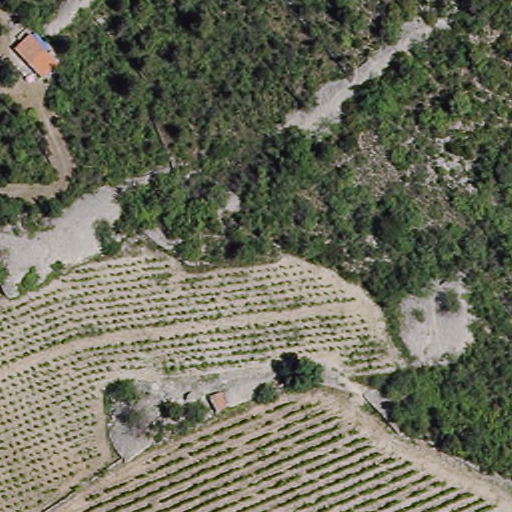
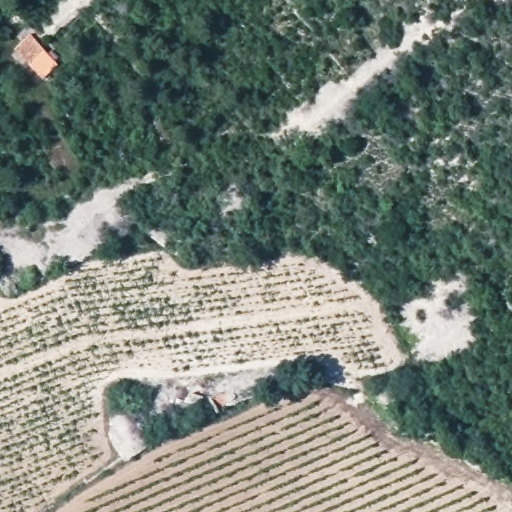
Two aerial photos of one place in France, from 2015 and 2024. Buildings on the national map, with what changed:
unchanged [(58,59),(43,72),(28,57),(43,43),(58,59)]

